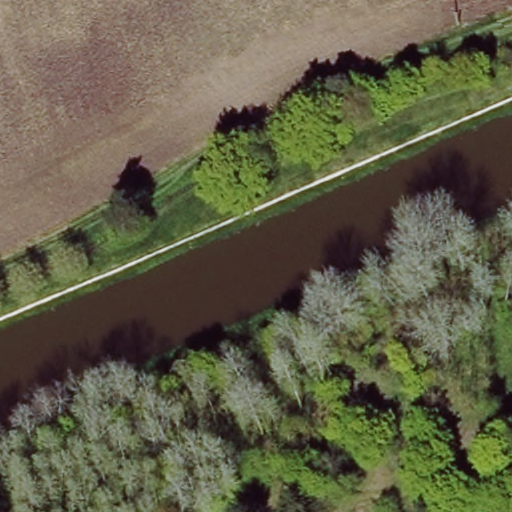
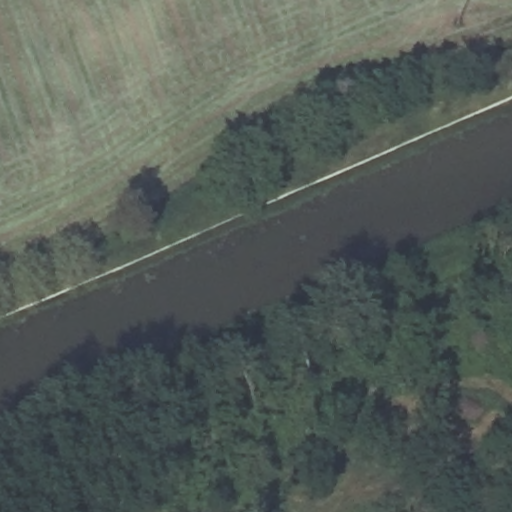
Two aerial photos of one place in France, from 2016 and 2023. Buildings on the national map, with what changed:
[]

